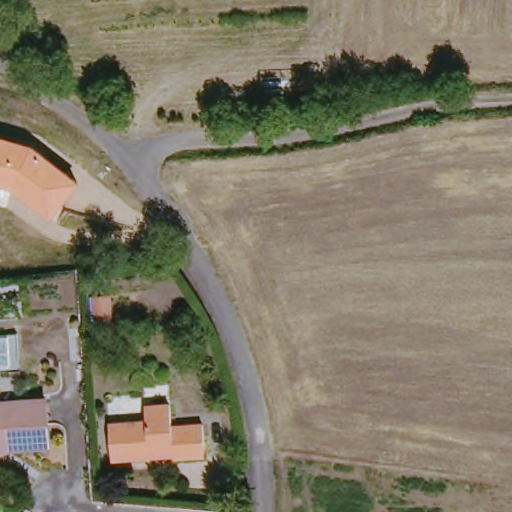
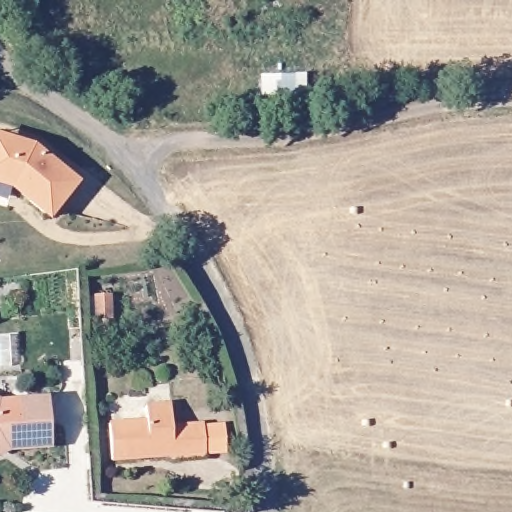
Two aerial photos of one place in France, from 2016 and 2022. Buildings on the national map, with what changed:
unchanged [(79,183),(49,220),(11,189),(0,186),(0,137),(35,147),(79,183)]
unchanged [(167,458),(167,455),(105,458),(102,420),(140,417),(140,402),(175,401),(176,424),(208,423),(209,455),(167,458)]
unchanged [(45,451),(2,453),(0,451),(0,405),(42,403),(45,451)]

